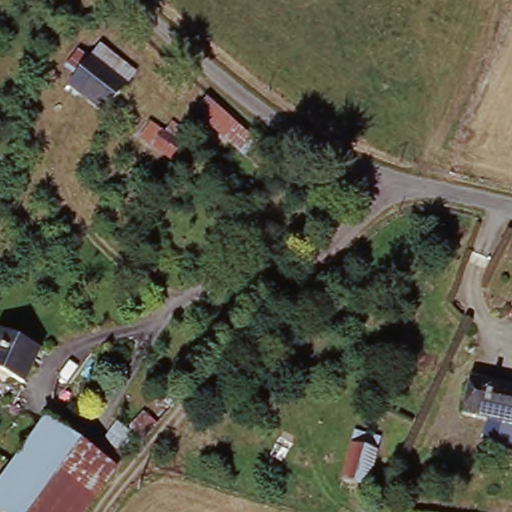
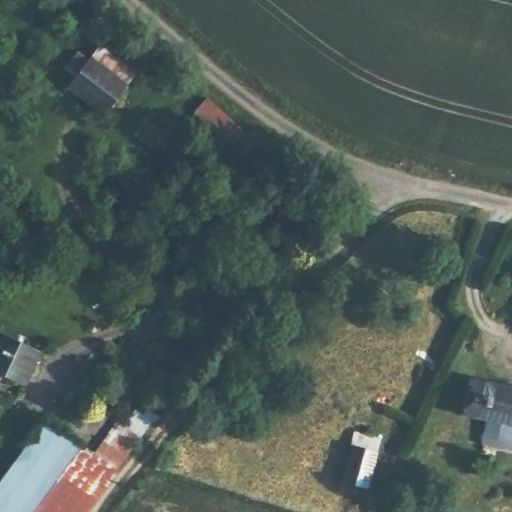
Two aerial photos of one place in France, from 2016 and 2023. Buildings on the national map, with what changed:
unchanged [(91,58),(128,87),(107,114),(70,84),(91,58)]
unchanged [(261,142),(251,154),(222,128),(229,115),(230,116),(261,142)]
unchanged [(158,123),(184,144),(172,159),(146,138),(158,123)]
unchanged [(46,352),(26,389),(0,374),(0,339),(6,329),(46,352)]
unchanged [(464,414),(473,376),(512,384),(512,424),(464,414)]
unchanged [(0,490),(50,419),(96,454),(108,438),(126,453),(89,501),(82,512),(0,512),(0,490)]
unchanged [(354,429),(378,434),(369,485),(345,480),(354,429)]

